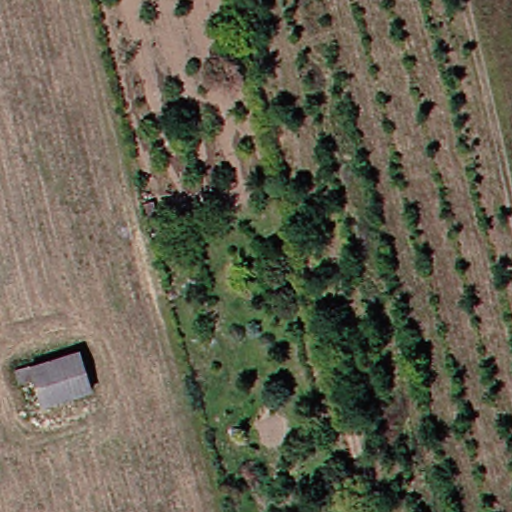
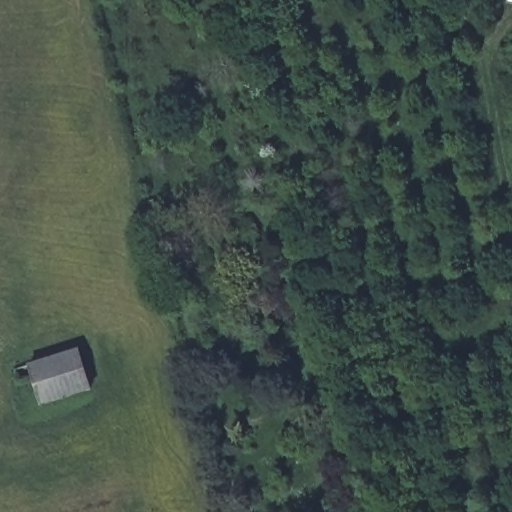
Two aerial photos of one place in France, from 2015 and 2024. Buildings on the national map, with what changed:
unchanged [(95,390),(46,407),(33,365),(82,350),(95,390)]

